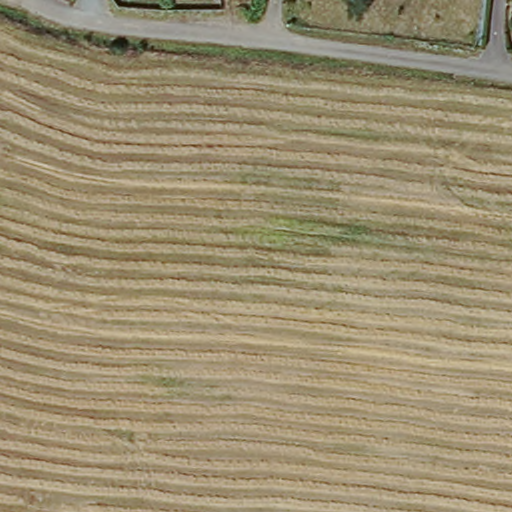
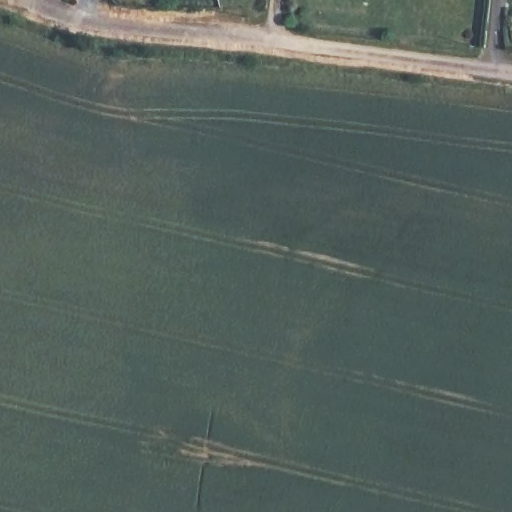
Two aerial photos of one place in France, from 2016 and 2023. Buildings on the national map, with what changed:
unchanged [(54,0),(75,0),(54,1),(54,0)]

